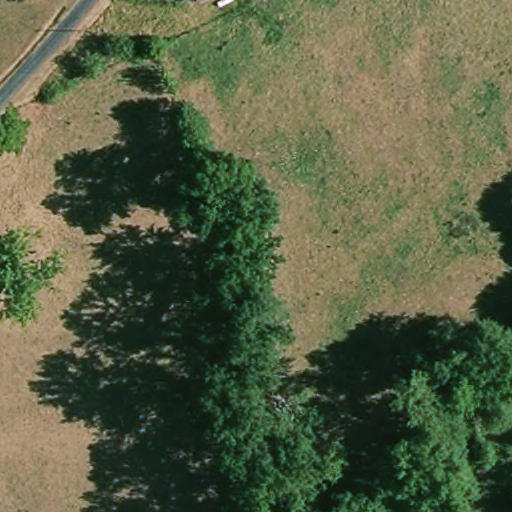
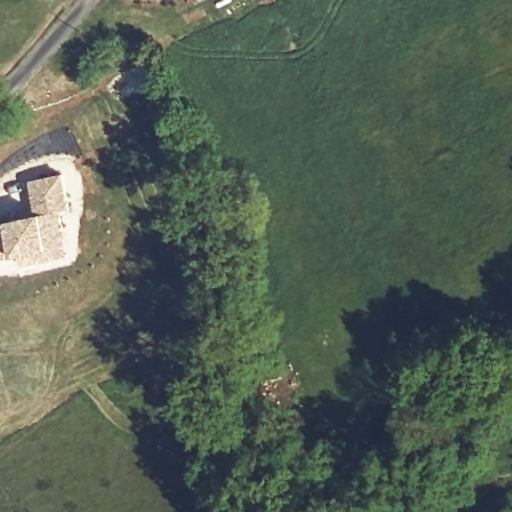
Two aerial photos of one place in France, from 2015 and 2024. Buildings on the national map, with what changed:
new [(62,211),(71,255),(26,265),(25,255),(16,256),(0,259),(0,215),(17,212),(19,219),(37,214),(30,181),(64,174),(71,208),(62,211)]

